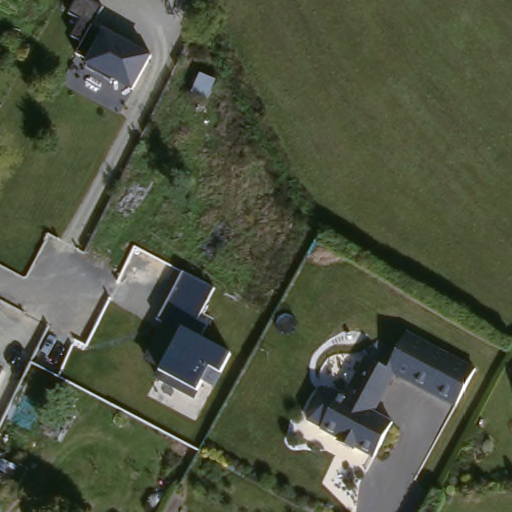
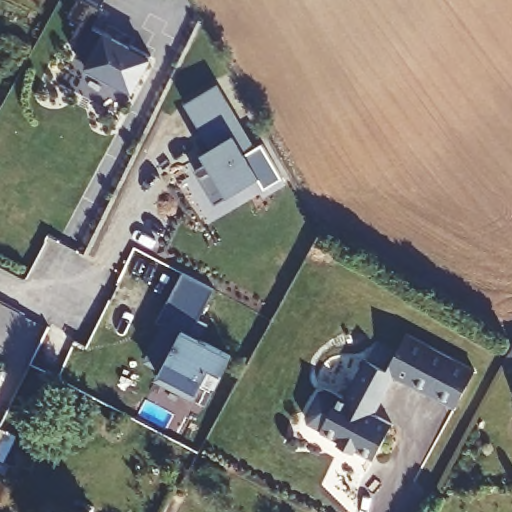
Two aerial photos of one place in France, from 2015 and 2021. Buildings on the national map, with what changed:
unchanged [(71,37),(81,20),(70,14),(75,0),(105,0),(93,27),(105,32),(152,57),(134,92),(111,81),(110,83),(86,70),(89,67),(84,65),(87,61),(77,56),(83,42),(71,37)]
new [(209,195),(195,171),(214,160),(209,152),(204,155),(195,138),(204,132),(187,102),(218,84),(236,115),(256,148),(263,144),(283,178),(265,189),(259,179),(229,197),(216,205),(209,195)]
unchanged [(156,380),(159,372),(162,369),(145,361),(165,324),(159,321),(183,275),(213,291),(196,322),(207,328),(201,340),(230,357),(221,376),(210,370),(198,393),(194,402),(156,380)]
unchanged [(396,378),(401,364),(412,335),(474,366),(457,409),(396,378)]
unchanged [(313,419),(330,382),(354,393),(370,357),(401,364),(396,378),(380,416),(393,422),(382,457),(313,419)]
unchanged [(0,379),(0,368),(4,370),(0,379)]

